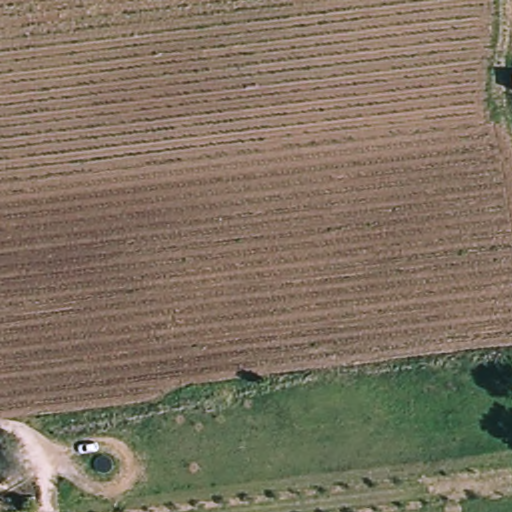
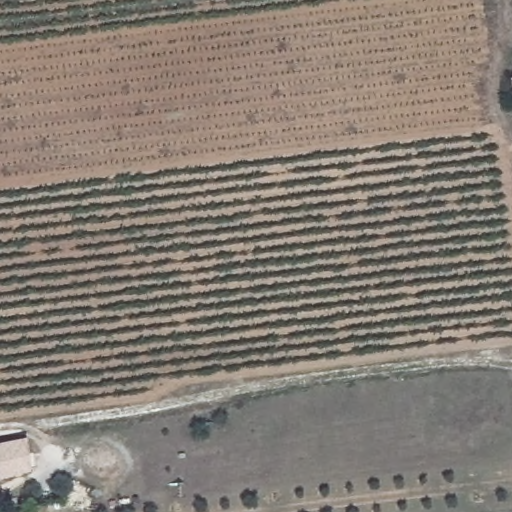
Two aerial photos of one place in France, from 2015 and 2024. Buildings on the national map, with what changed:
new [(29,470),(0,479),(0,443),(26,436),(29,470)]

